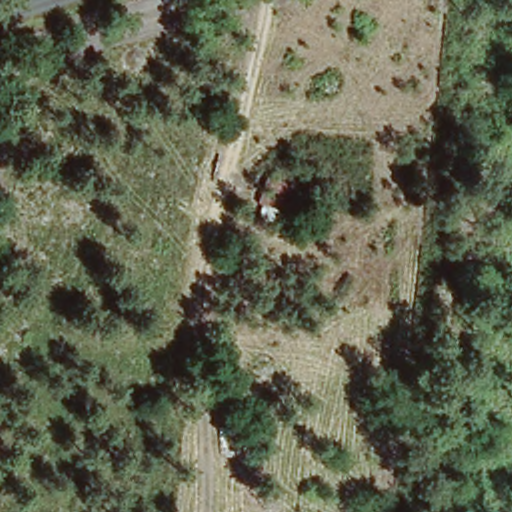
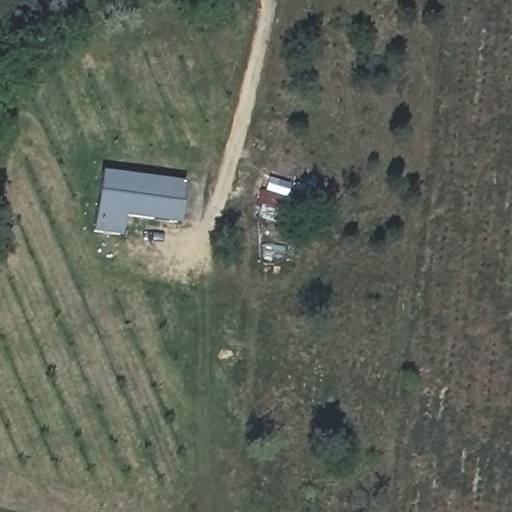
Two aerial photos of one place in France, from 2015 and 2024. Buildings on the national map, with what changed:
new [(182,182),(176,223),(124,216),(120,237),(92,232),(101,171),(182,182)]
demolished [(260,175),(286,179),(272,215),(246,205),(260,175)]

